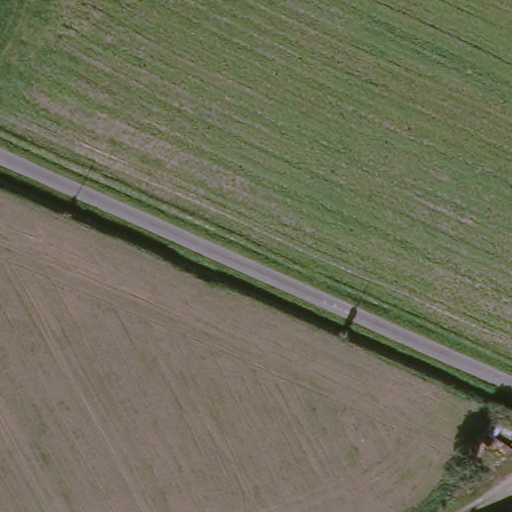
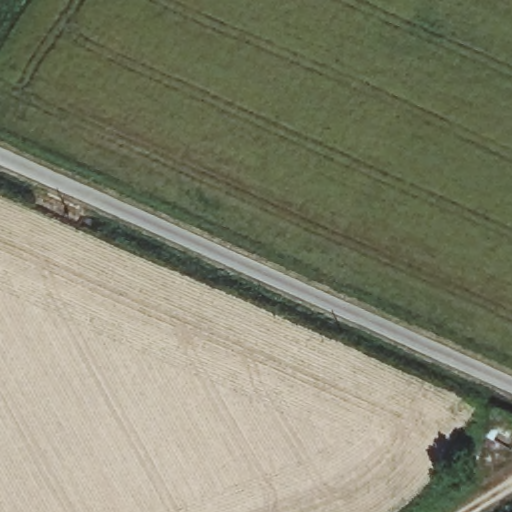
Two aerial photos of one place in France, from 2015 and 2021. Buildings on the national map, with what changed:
unchanged [(497,405),(512,412),(512,421),(504,434),(487,425),(497,405)]

